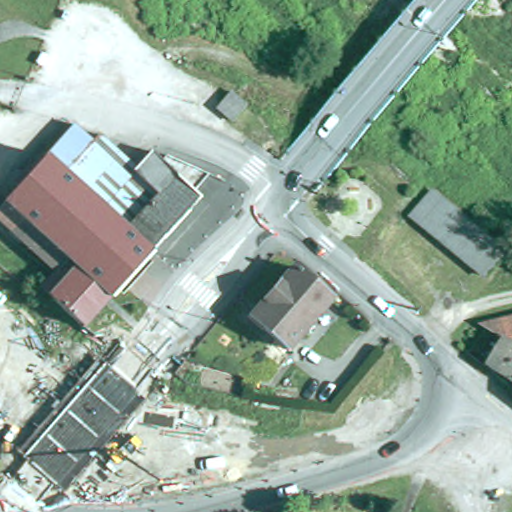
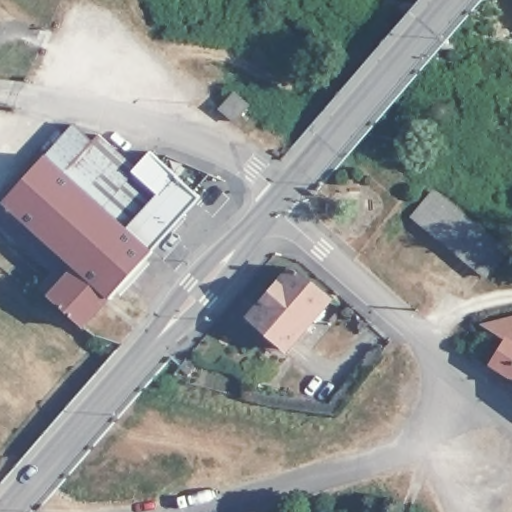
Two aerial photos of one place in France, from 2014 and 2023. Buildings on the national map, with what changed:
unchanged [(235,123),(221,111),(234,95),(249,107),(235,123)]
unchanged [(43,287),(58,271),(21,239),(13,232),(23,219),(6,203),(18,189),(14,185),(41,153),(45,156),(46,156),(67,131),(70,126),(71,127),(90,141),(95,135),(133,167),(148,151),(159,160),(164,155),(177,160),(206,172),(192,188),(199,194),(151,250),(86,323),(43,287)]
unchanged [(463,254),(414,212),(428,197),(435,188),(507,250),(486,273),(463,254)]
unchanged [(286,344),(248,311),(293,260),(330,293),(286,344)]
unchanged [(488,362),(503,342),(488,331),(482,339),(474,334),(482,324),(496,316),(512,313),(512,380),(488,362)]

